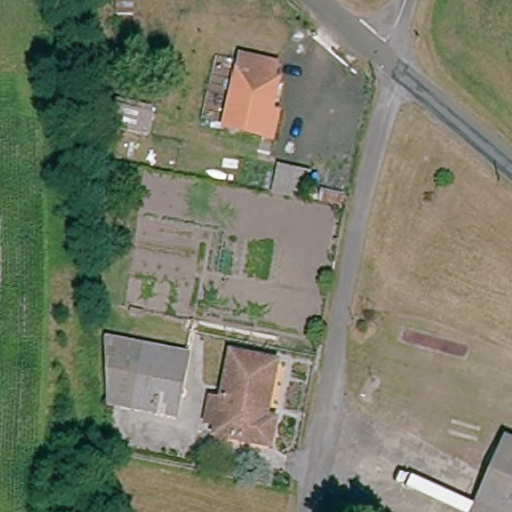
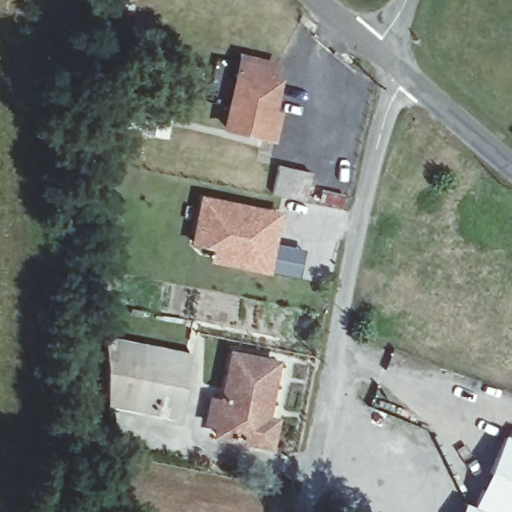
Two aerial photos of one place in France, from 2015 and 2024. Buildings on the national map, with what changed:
unchanged [(142,18),(126,19),(125,0),(143,0),(142,18)]
unchanged [(245,54),(276,59),(272,75),(281,77),(265,134),(227,122),(245,54)]
unchanged [(144,80),(127,79),(126,56),(142,55),(144,80)]
unchanged [(127,132),(132,112),(134,101),(147,104),(167,107),(165,118),(161,141),(127,132)]
unchanged [(276,162),(311,173),(304,199),(270,189),(276,162)]
new [(281,211),(275,245),(303,250),(297,280),(209,264),(212,247),(191,244),(201,196),(281,211)]
unchanged [(105,399),(117,346),(143,351),(129,404),(105,399)]
unchanged [(143,351),(187,359),(175,415),(129,404),(143,351)]
unchanged [(230,352),(272,365),(260,417),(272,422),(265,445),(213,428),(230,352)]
unchanged [(512,435),(512,512),(473,512),(510,434),(512,435)]

